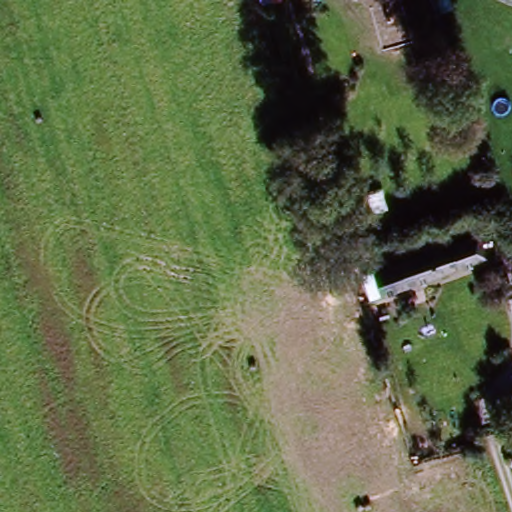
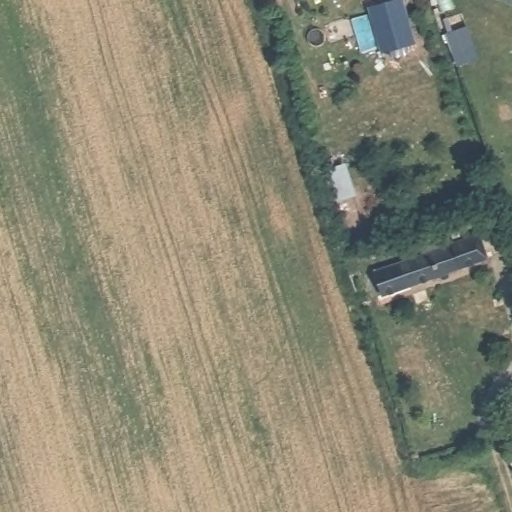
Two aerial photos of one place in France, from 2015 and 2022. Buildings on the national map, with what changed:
unchanged [(265,10),(262,0),(286,0),(287,4),(265,10)]
new [(415,47),(385,56),(372,12),(402,3),(415,47)]
unchanged [(369,277),(474,235),(484,262),(380,305),(369,277)]

